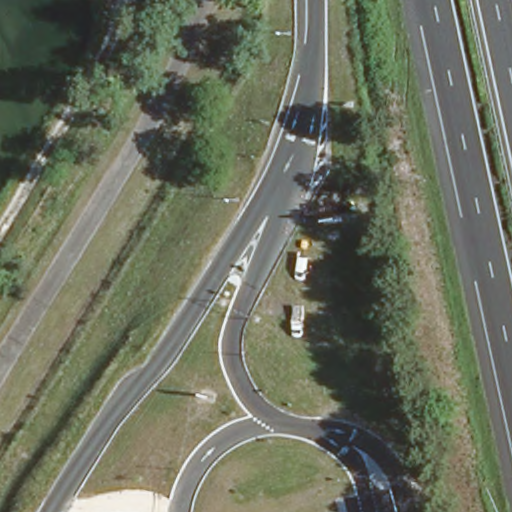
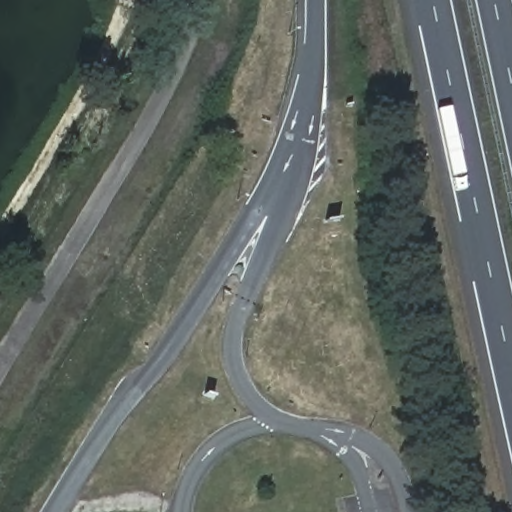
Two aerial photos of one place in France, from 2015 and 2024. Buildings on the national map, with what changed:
[]

